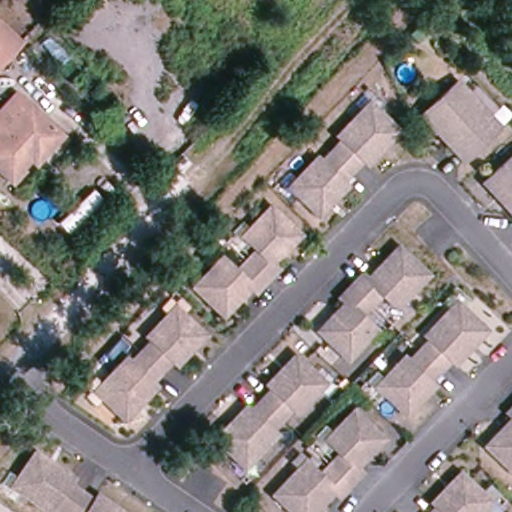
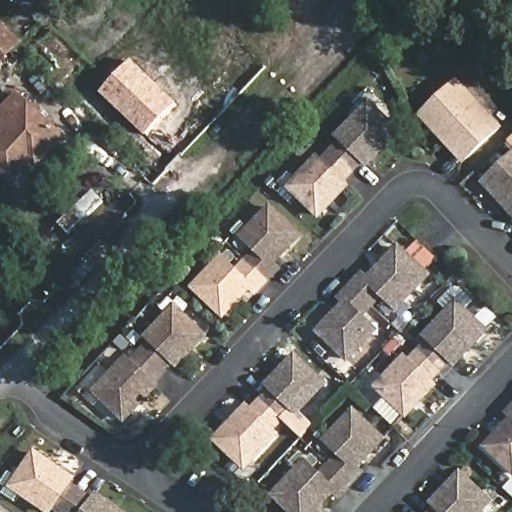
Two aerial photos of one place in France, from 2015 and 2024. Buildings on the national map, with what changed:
unchanged [(24,45),(0,69),(0,22),(23,44),(24,45)]
new [(146,135),(100,92),(132,59),(177,103),(146,135)]
unchanged [(465,160),(423,115),(458,82),(500,127),(465,160)]
unchanged [(31,162),(10,182),(0,173),(0,137),(1,135),(0,135),(0,113),(17,95),(63,139),(46,156),(36,167),(31,162)]
unchanged [(344,140),(340,135),(365,109),(378,109),(400,131),(369,164),(364,159),(353,170),(333,150),(344,140)]
unchanged [(353,170),(343,180),(347,185),(320,214),(297,193),(297,178),(318,157),(323,161),(333,150),(353,170)]
unchanged [(486,182),(512,158),(512,211),(486,182)]
unchanged [(254,250),(246,243),(246,229),(267,207),(296,236),(268,264),(275,268),(263,280),(244,261),(254,250)]
unchanged [(365,274),(370,279),(401,247),(430,274),(404,302),(390,302),(383,295),(373,306),(352,287),(365,274)]
unchanged [(263,280),(252,292),(247,287),(220,315),(191,288),(212,265),(226,266),(233,272),(244,261),(263,280)]
unchanged [(373,306),(364,318),(370,323),(370,339),(350,360),(320,333),(346,304),(341,298),(352,287),(373,306)]
unchanged [(430,344),(425,339),(450,314),(464,313),(485,335),(455,367),(450,363),(440,374),(420,355),(430,344)]
unchanged [(134,352),(145,340),(142,335),(161,314),(175,314),(197,335),(170,364),(165,360),(154,371),(134,352)]
unchanged [(145,382),(149,387),(117,419),(94,398),(94,385),(119,359),(125,363),(134,352),(154,371),(145,382)]
unchanged [(440,374),(430,385),(434,389),(405,419),(384,397),(383,384),(405,361),(410,366),(420,355),(440,374)]
unchanged [(273,391),(269,388),(296,358),(319,379),(320,393),(297,415),(293,411),(282,421),(262,402),(273,391)]
unchanged [(282,421),(272,432),(277,436),(252,462),(238,462),(216,440),(249,410),(252,413),(262,402),(282,421)]
unchanged [(508,414),(512,410),(512,418),(508,414)]
unchanged [(339,455),(331,448),(331,433),(351,412),(381,440),(353,469),(359,474),(350,484),(329,465),(339,455)]
unchanged [(487,449),(512,420),(512,471),(487,449)]
unchanged [(70,512),(60,512),(55,508),(52,512),(49,512),(21,493),(19,479),(36,454),(74,479),(70,485),(83,493),(70,512)]
unchanged [(350,484),(338,496),(332,491),(313,512),(290,512),(273,495),(296,470),(311,470),(317,477),(329,465),(350,484)]
unchanged [(435,506),(430,502),(456,472),(480,492),(480,506),(475,512),(429,512),(435,506)]
unchanged [(95,502),(99,497),(121,512),(70,512),(83,493),(95,502)]

